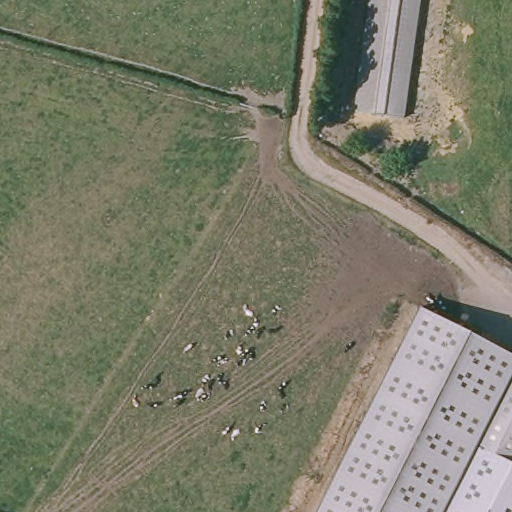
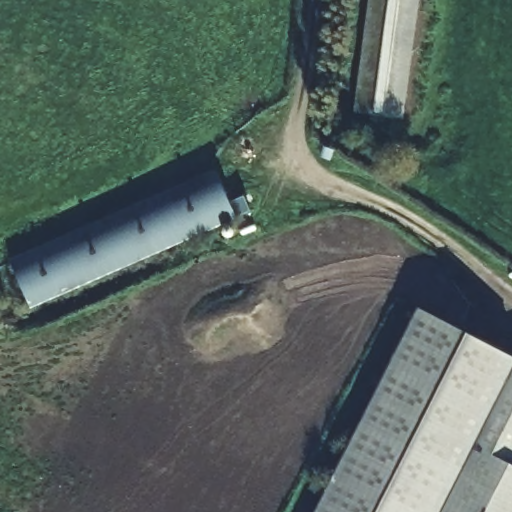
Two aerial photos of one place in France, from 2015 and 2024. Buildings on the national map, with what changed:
unchanged [(403,117),(358,112),(372,0),(419,0),(403,117)]
new [(218,172),(231,202),(244,197),(251,210),(29,306),(10,262),(218,172)]
unchanged [(512,512),(317,512),(420,308),(512,355),(512,512)]

